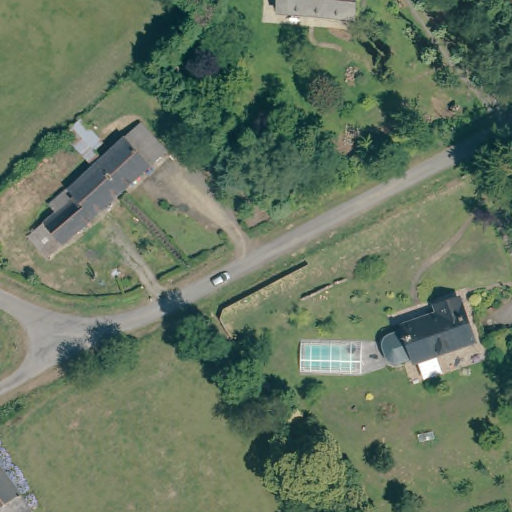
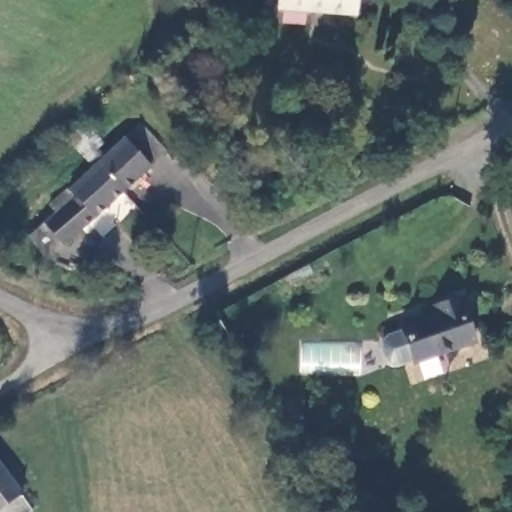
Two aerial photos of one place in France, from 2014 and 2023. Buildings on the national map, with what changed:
unchanged [(365,19),(286,14),(287,0),(366,0),(365,19)]
unchanged [(62,246),(42,227),(75,198),(67,189),(81,176),(94,164),(88,157),(64,131),(72,124),(80,116),(100,136),(91,144),(96,149),(102,156),(122,137),(129,131),(141,121),(166,148),(155,158),(149,165),(124,188),(74,236),(62,246)]
unchanged [(151,266),(162,258),(171,269),(160,276),(151,266)]
unchanged [(142,270),(152,282),(141,290),(131,280),(142,270)]
unchanged [(490,338),(431,364),(430,360),(415,367),(410,367),(407,366),(405,364),(403,361),(398,352),(398,350),(398,346),(400,342),(403,339),(417,333),(415,329),(450,313),(447,306),(470,296),(490,338)]
unchanged [(0,451),(30,489),(38,496),(42,501),(31,510),(29,512),(9,512),(0,502),(0,451)]

